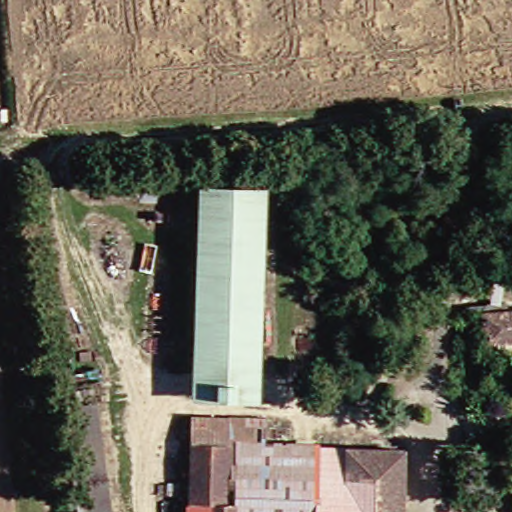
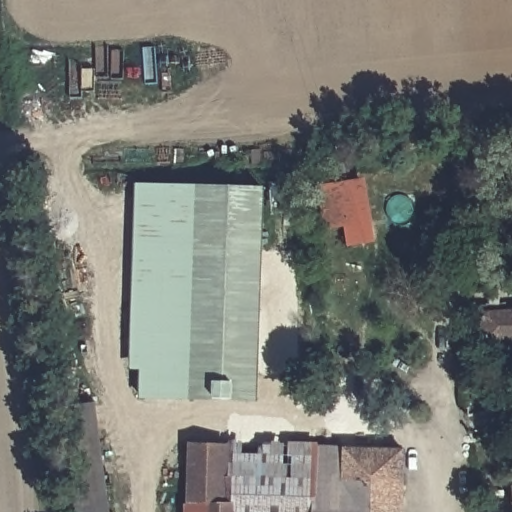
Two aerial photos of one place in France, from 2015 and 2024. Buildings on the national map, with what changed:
new [(348,248),(345,228),(325,229),(318,185),(368,179),(376,244),(348,248)]
new [(140,398),(141,370),(131,369),(137,186),(197,188),(190,401),(140,398)]
unchanged [(197,188),(264,192),(258,404),(190,401),(197,188)]
unchanged [(473,317),(512,313),(512,343),(476,346),(473,317)]
new [(66,409),(97,404),(112,512),(77,512),(66,409)]
unchanged [(285,447),(340,449),(336,478),(313,478),(311,512),(185,512),(187,432),(188,414),(260,417),(260,427),(286,428),(285,447)]
unchanged [(397,512),(311,512),(313,478),(336,478),(340,449),(398,452),(397,512)]
unchanged [(506,482),(512,481),(512,512),(509,512),(506,482)]

